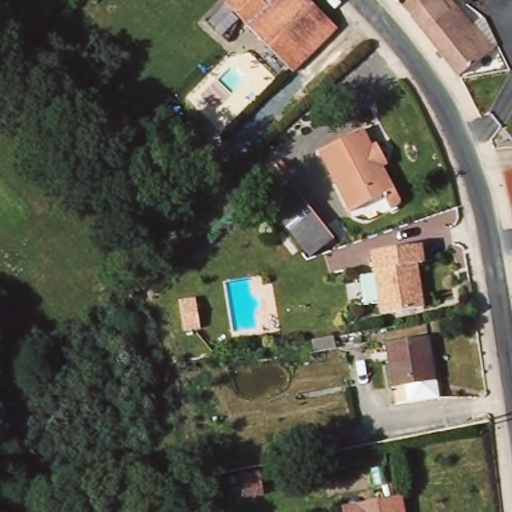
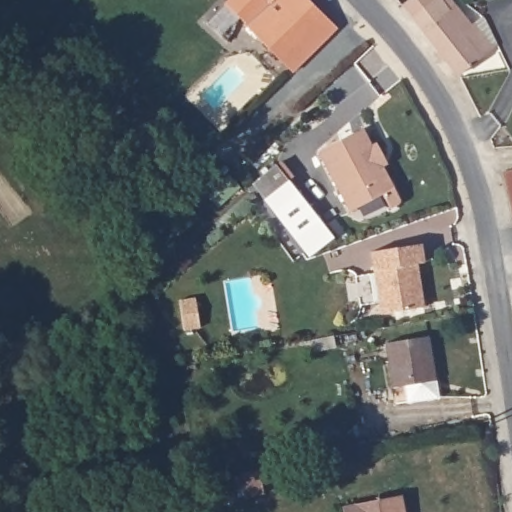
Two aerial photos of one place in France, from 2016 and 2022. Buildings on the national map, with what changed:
unchanged [(233,4),(236,0),(314,0),(344,29),(302,71),(233,4)]
unchanged [(473,24),(484,15),(486,17),(500,45),(460,75),(413,16),(405,7),(413,0),(443,0),(454,0),(459,6),(473,24)]
unchanged [(370,129),(379,145),(383,142),(390,156),(387,160),(406,196),(407,204),(397,209),(389,195),(356,210),(326,151),(370,129)]
unchanged [(335,233),(312,252),(254,180),(276,160),(335,233)]
unchanged [(512,183),(510,172),(512,172),(512,183)]
unchanged [(404,321),(403,310),(388,312),(379,251),(428,245),(430,263),(423,263),(429,306),(415,308),(416,320),(404,321)]
unchanged [(195,297),(200,327),(184,330),(178,300),(195,297)]
unchanged [(317,347),(314,340),(334,337),(335,345),(317,347)]
unchanged [(435,337),(441,380),(397,387),(391,343),(435,337)]
unchanged [(261,471),(264,495),(245,498),(241,475),(261,471)]
unchanged [(352,502),(413,491),(417,512),(353,512),(352,502)]

